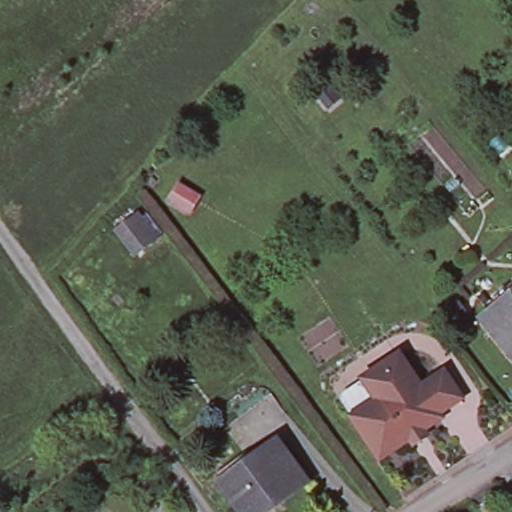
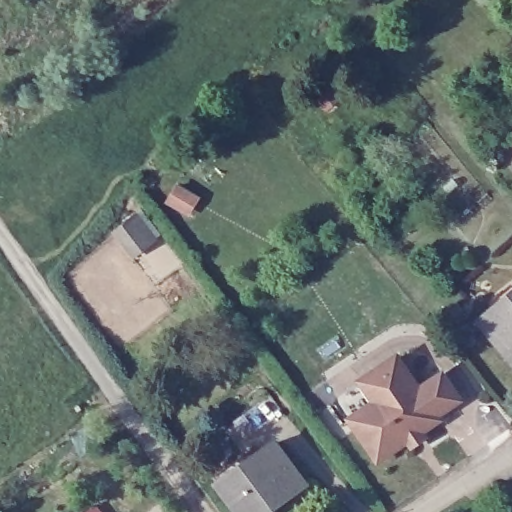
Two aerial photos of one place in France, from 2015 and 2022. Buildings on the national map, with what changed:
unchanged [(200,195),(190,212),(170,201),(180,183),(200,195)]
unchanged [(157,238),(135,256),(121,236),(143,220),(157,238)]
unchanged [(512,290),(512,354),(480,317),(512,290)]
unchanged [(403,437),(375,455),(348,411),(341,400),(343,390),(378,368),(400,354),(420,385),(441,371),(458,398),(436,412),(438,416),(419,427),(423,434),(408,444),(403,437)]
unchanged [(306,486),(271,512),(264,505),(253,512),(236,512),(217,485),(276,444),(306,486)]

